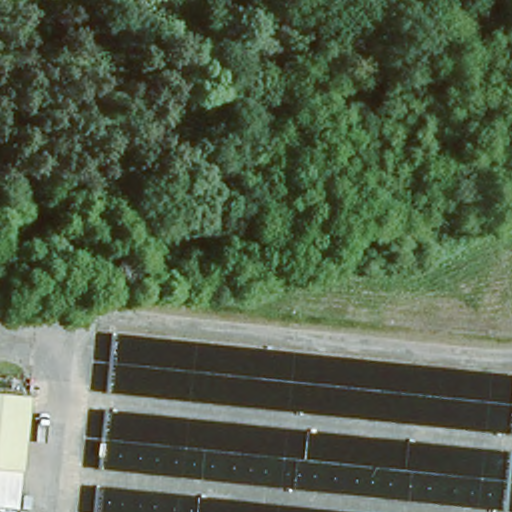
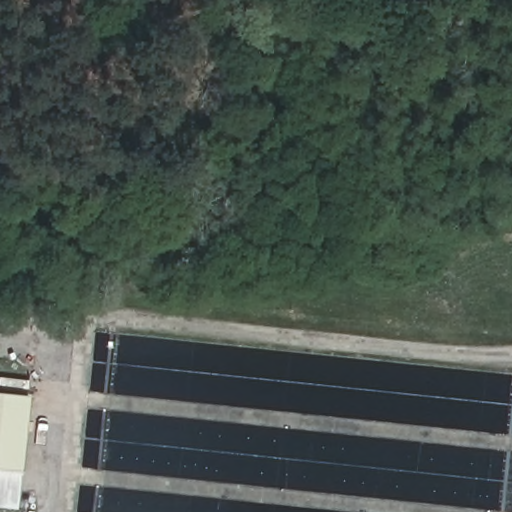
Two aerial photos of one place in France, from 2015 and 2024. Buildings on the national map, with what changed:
unchanged [(20,468),(17,505),(2,507),(1,512),(0,512),(0,391),(27,393),(20,468)]

